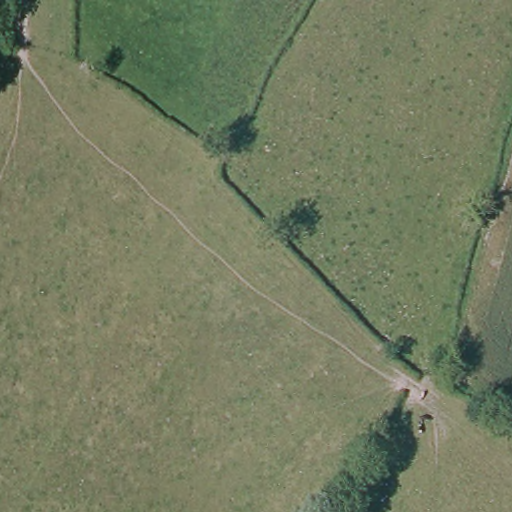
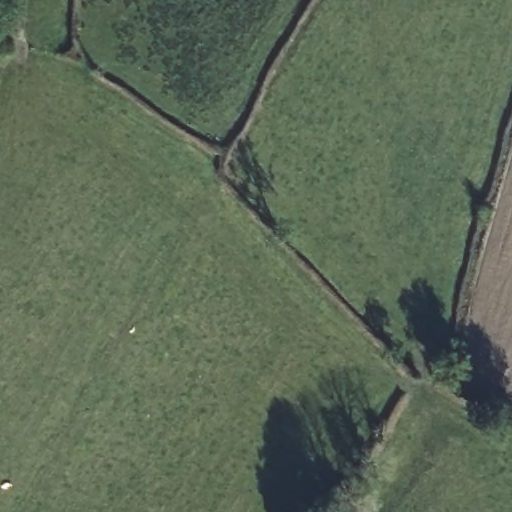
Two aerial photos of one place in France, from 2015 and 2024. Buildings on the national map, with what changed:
[]

